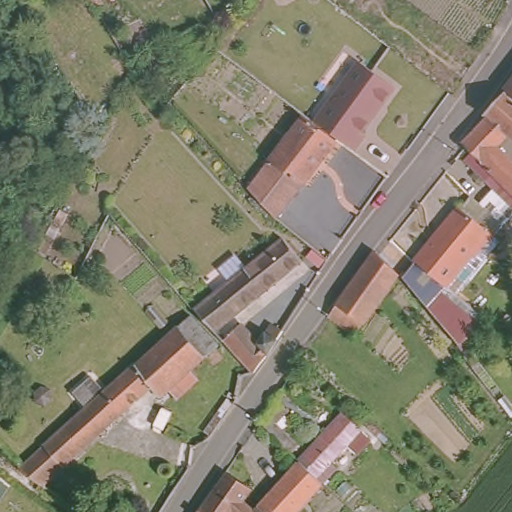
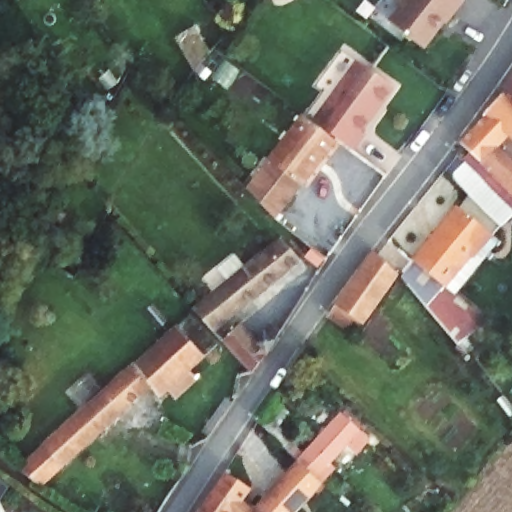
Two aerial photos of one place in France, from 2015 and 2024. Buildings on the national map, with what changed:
demolished [(280,16),(277,0),(298,0),(300,14),(280,16)]
new [(387,19),(401,2),(398,0),(464,0),(424,49),(387,19)]
unchanged [(196,71),(178,38),(196,28),(211,54),(196,71)]
unchanged [(368,135),(372,138),(360,154),(321,125),(366,65),(401,90),(386,110),(378,122),(368,135)]
unchanged [(471,153),(463,144),(465,143),(488,117),(485,114),(490,109),(506,91),(505,90),(512,81),(512,135),(511,134),(498,146),(512,160),(512,202),(507,206),(463,161),(471,153)]
unchanged [(272,159),(306,117),(336,141),(302,183),(272,159)]
unchanged [(248,188),(272,159),(302,183),(275,217),(248,188)]
unchanged [(460,210),(494,239),(475,260),(473,259),(446,289),(414,263),(460,210)]
unchanged [(293,228),(314,245),(222,321),(215,327),(197,306),(293,228)]
unchanged [(377,250),(400,274),(364,324),(356,335),(330,317),(337,305),(377,250)]
unchanged [(448,335),(415,292),(402,277),(414,263),(446,289),(446,290),(470,310),(452,331),(448,335)]
unchanged [(75,415),(86,405),(87,404),(73,387),(90,372),(100,381),(105,387),(155,343),(188,314),(191,311),(217,340),(191,366),(197,374),(177,392),(170,385),(160,394),(150,382),(40,480),(19,464),(75,415)]
unchanged [(215,327),(222,321),(232,330),(238,325),(258,339),(271,320),(283,327),(255,369),(215,327)]
unchanged [(283,406),(266,427),(259,420),(257,418),(271,398),(283,406)]
unchanged [(325,480),(310,464),(301,457),(345,409),(365,427),(336,460),(342,466),(327,482),(325,480)]
unchanged [(226,471),(250,487),(245,494),(258,505),(301,457),(310,464),(325,480),(296,512),(236,512),(233,509),(232,512),(197,512),(226,471)]

